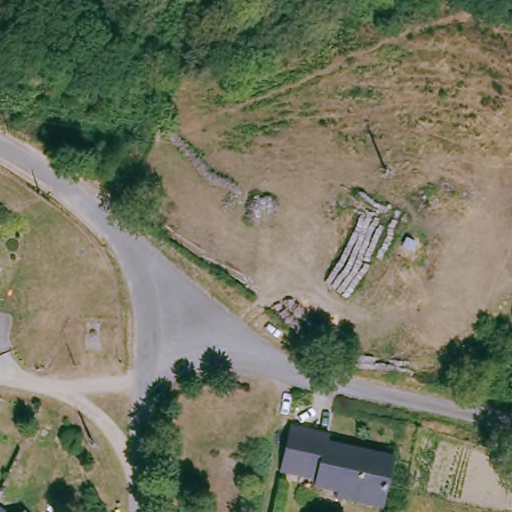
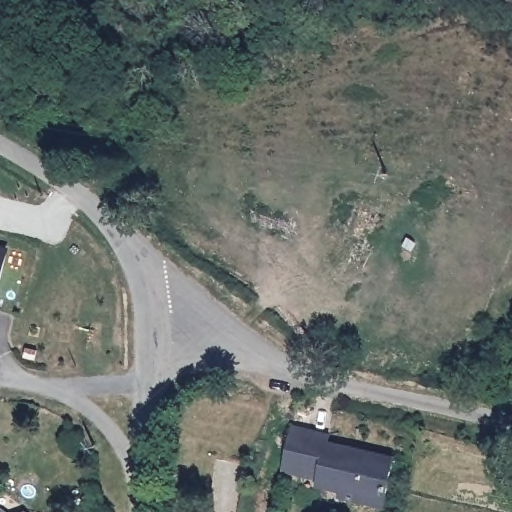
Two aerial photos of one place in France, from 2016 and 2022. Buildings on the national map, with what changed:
unchanged [(381,495),(336,485),(336,487),(312,481),(314,476),(296,471),(296,469),(306,426),(325,431),(324,438),(391,455),(382,488),(381,495)]
unchanged [(14,503),(22,512),(6,512),(14,503)]

